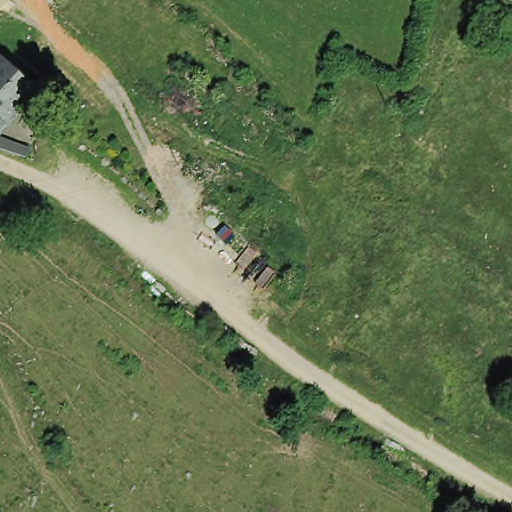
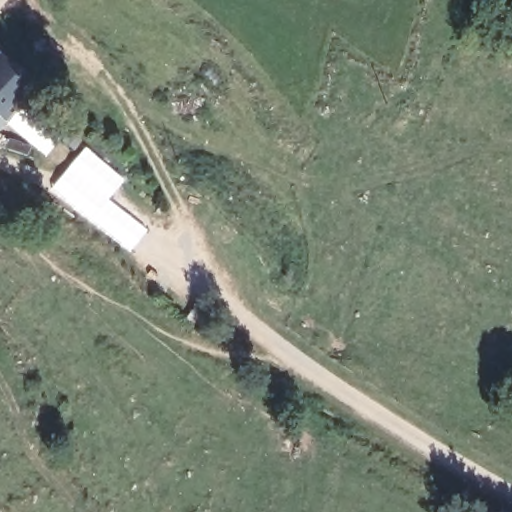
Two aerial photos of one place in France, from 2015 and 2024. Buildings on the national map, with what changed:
new [(0,0),(7,0),(0,9),(0,0)]
unchanged [(0,65),(4,61),(12,53),(45,85),(27,105),(0,82),(0,65)]
unchanged [(0,65),(0,58),(4,61),(0,65)]
unchanged [(0,134),(0,82),(27,105),(0,134)]
new [(85,145),(125,180),(110,198),(148,229),(130,253),(80,215),(49,189),(85,145)]

